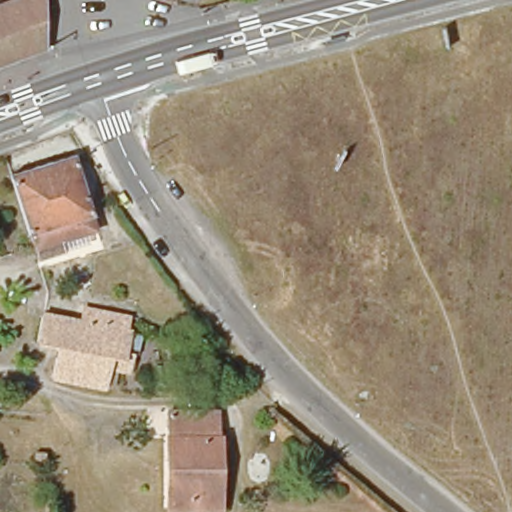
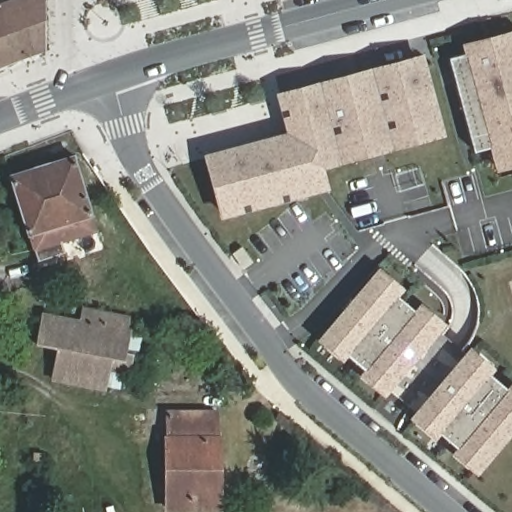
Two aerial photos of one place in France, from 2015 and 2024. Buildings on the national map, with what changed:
unchanged [(16,0),(46,0),(47,50),(46,50),(0,67),(0,6),(16,0)]
new [(474,151),(449,58),(488,47),(467,53),(465,46),(486,40),(512,33),(512,162),(497,166),(496,160),(492,146),(474,151)]
new [(314,189),(223,214),(208,157),(292,135),(281,95),(420,58),(441,133),(321,165),(326,186),(314,189)]
unchanged [(12,176),(74,157),(92,215),(97,230),(61,242),(64,253),(38,261),(12,176)]
new [(245,269),(233,254),(242,248),(253,263),(245,269)]
new [(382,389),(321,337),(330,327),(368,282),(377,271),(438,323),(471,351),(512,386),(512,426),(485,458),(476,469),(415,417),(382,389)]
unchanged [(38,315),(77,321),(80,309),(124,317),(122,328),(127,330),(120,361),(108,359),(102,389),(47,379),(52,350),(32,346),(38,315)]
unchanged [(170,413),(217,413),(217,439),(220,439),(221,509),(169,509),(169,438),(170,438),(170,413)]

